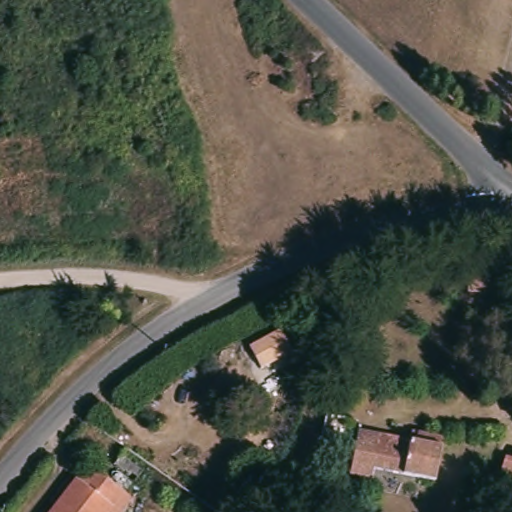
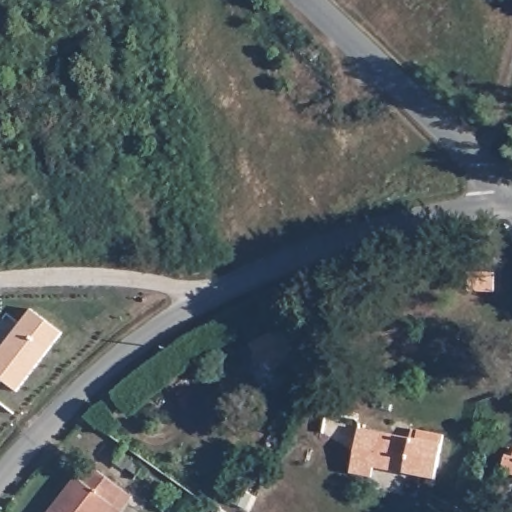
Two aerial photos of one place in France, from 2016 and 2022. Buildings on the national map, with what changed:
unchanged [(495,272),(493,292),(467,291),(468,271),(495,272)]
new [(60,330),(16,388),(0,377),(0,345),(29,306),(60,330)]
new [(280,328),(291,351),(261,367),(249,345),(280,328)]
unchanged [(373,461),(371,471),(350,467),(358,422),(410,432),(411,423),(443,430),(435,473),(373,461)]
unchanged [(500,476),(505,455),(512,457),(512,480),(500,476)]
unchanged [(120,506),(123,507),(120,512),(44,512),(76,471),(79,473),(90,458),(124,485),(131,491),(120,506)]

